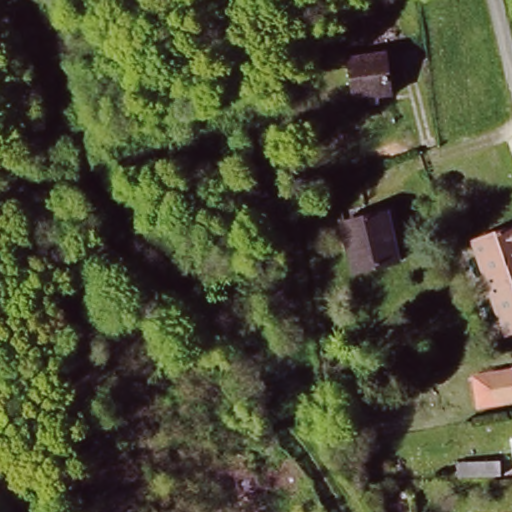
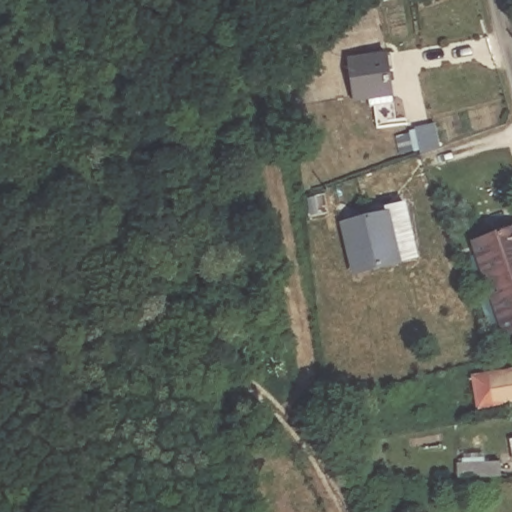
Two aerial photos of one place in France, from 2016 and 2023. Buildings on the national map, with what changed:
unchanged [(390,49),(396,91),(382,92),(382,99),(373,100),(372,94),(357,96),(352,54),(390,49)]
unchanged [(392,207),(399,256),(359,263),(351,214),(392,207)]
unchanged [(478,257),(472,239),(512,226),(512,330),(505,332),(478,257)]
unchanged [(512,384),(512,398),(494,405),(485,382),(508,373),(512,384)]
unchanged [(507,459),(507,475),(465,476),(464,460),(507,459)]

